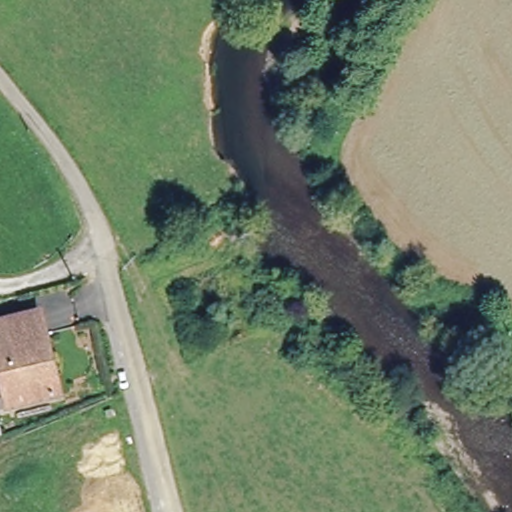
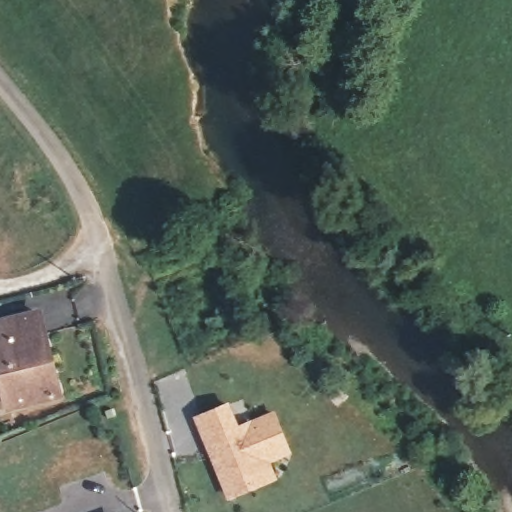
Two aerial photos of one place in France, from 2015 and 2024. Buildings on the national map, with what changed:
unchanged [(0,377),(0,318),(32,310),(55,395),(8,406),(0,377)]
new [(256,489),(230,500),(212,456),(215,455),(211,445),(207,447),(197,423),(227,410),(237,433),(273,418),(289,455),(267,465),(275,481),(256,489)]

